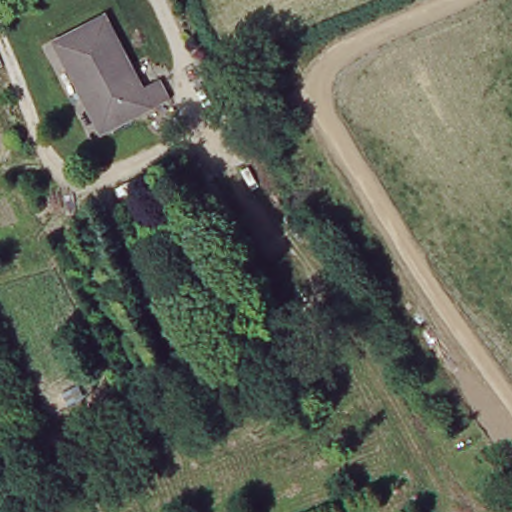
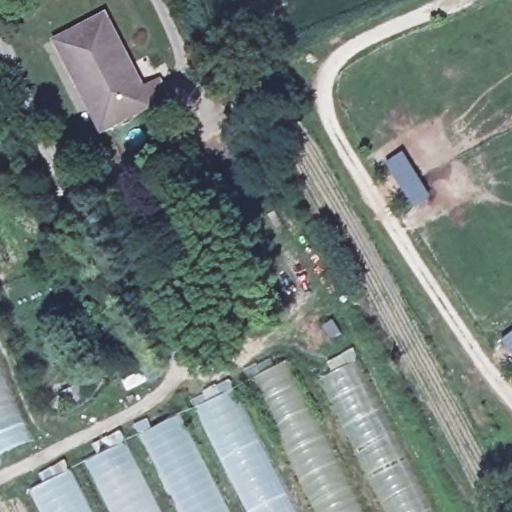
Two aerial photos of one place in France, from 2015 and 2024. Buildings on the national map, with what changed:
unchanged [(97,136),(52,48),(100,25),(134,94),(153,84),(163,102),(97,136)]
new [(325,363),(353,347),(360,360),(380,396),(418,482),(436,512),(382,512),(333,414),(317,376),(329,371),(325,363)]
new [(262,370),(287,358),(312,410),(364,512),(313,512),(303,493),(253,385),(248,372),(260,366),(262,370)]
new [(0,451),(0,368),(30,437),(0,451)]
new [(214,388),(229,379),(297,512),(246,512),(228,478),(195,406),(218,396),(214,388)]
new [(152,428),(178,415),(229,512),(180,512),(172,496),(133,424),(147,418),(152,428)]
new [(161,512),(109,512),(84,462),(125,442),(161,512)]
new [(38,473),(62,461),(69,468),(92,512),(39,512),(28,491),(43,482),(38,473)]

